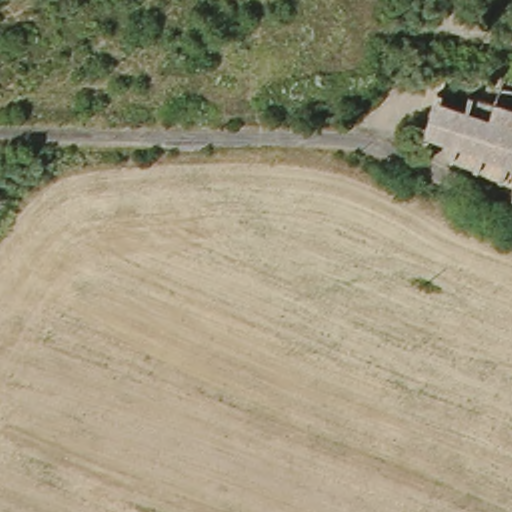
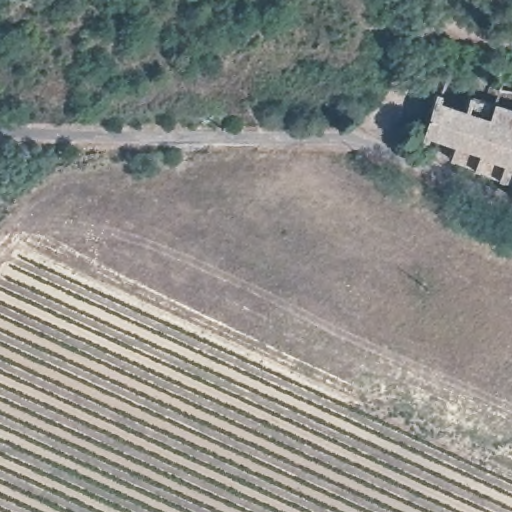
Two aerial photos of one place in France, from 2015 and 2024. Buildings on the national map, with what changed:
unchanged [(507,196),(510,186),(447,161),(449,148),(423,139),(434,102),(463,115),(468,99),(496,105),(512,111),(512,199),(507,196)]

